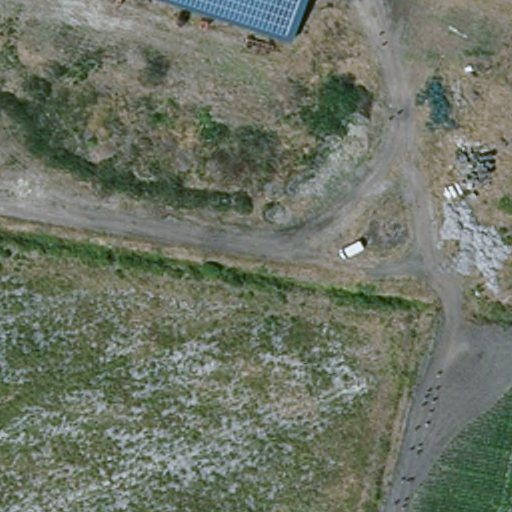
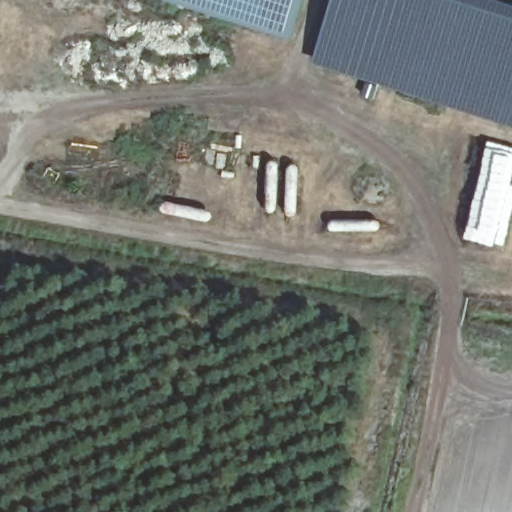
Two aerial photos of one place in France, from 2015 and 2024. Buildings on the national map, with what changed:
unchanged [(177,0),(302,0),(291,37),(177,0)]
new [(333,0),(504,0),(512,3),(512,126),(313,62),(333,0)]

